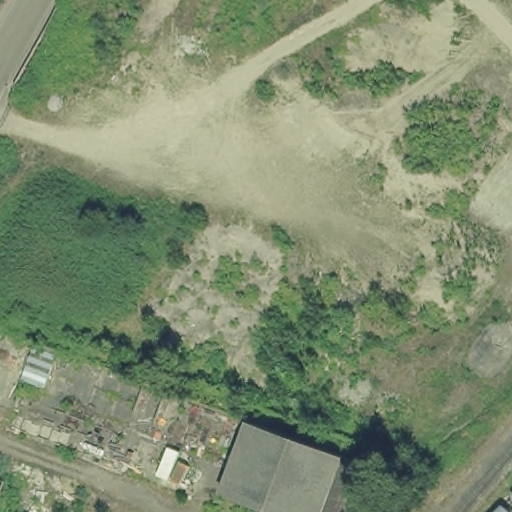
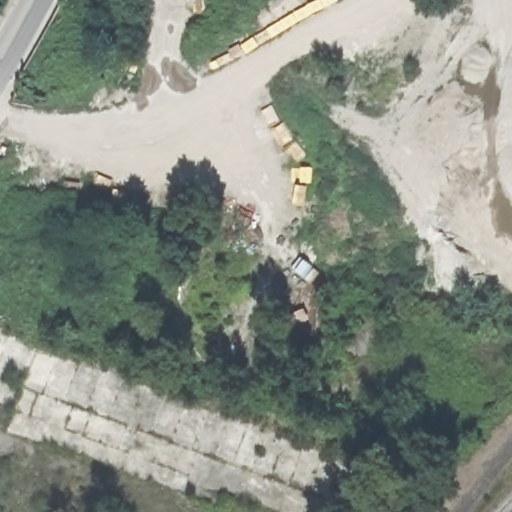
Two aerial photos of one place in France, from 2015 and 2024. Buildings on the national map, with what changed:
demolished [(323,512),(261,512),(224,498),(249,423),(344,456),(323,512)]

